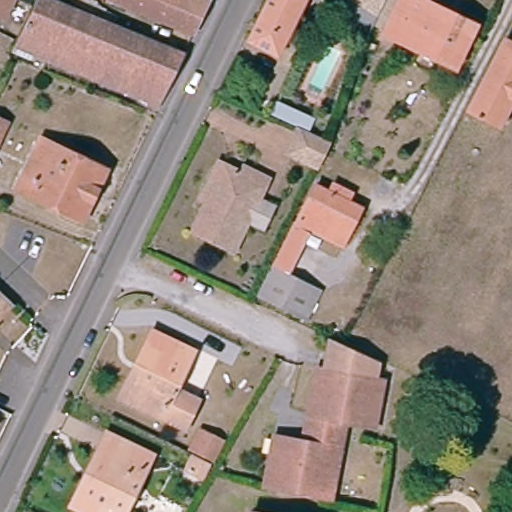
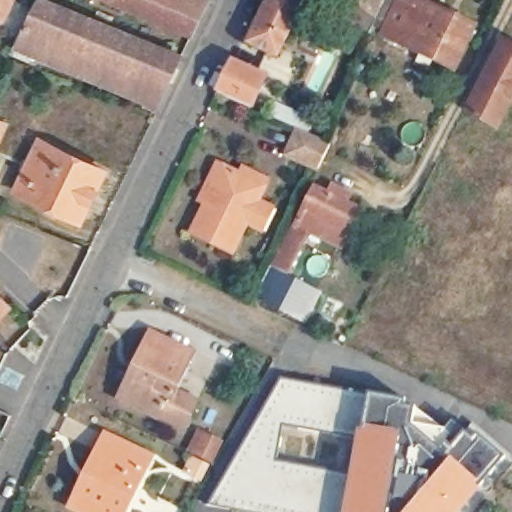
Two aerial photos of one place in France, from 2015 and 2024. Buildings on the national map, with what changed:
unchanged [(45,0),(126,34),(180,58),(156,111),(148,108),(149,104),(41,60),(19,49),(44,0),(45,0)]
unchanged [(104,0),(119,0),(116,6),(104,0)]
unchanged [(116,6),(119,0),(191,0),(197,3),(181,36),(116,6)]
unchanged [(247,44),(268,0),(304,0),(276,56),(247,44)]
unchanged [(396,0),(412,8),(413,5),(467,31),(447,70),(379,36),(396,0)]
unchanged [(512,44),(512,105),(501,128),(471,113),(508,41),(512,44)]
unchanged [(234,63),(268,78),(255,110),(218,94),(234,63)]
unchanged [(2,126),(0,129),(0,125),(2,126)]
unchanged [(319,153),(309,173),(280,158),(292,131),(323,145),(319,153)]
unchanged [(42,141),(106,173),(83,221),(17,189),(42,141)]
unchanged [(239,161),(268,177),(258,200),(271,206),(258,230),(245,225),(229,255),(183,232),(198,201),(189,196),(207,164),(215,168),(231,177),(239,161)]
unchanged [(329,196),(335,185),(357,196),(352,207),(361,211),(343,249),(310,234),(287,279),(319,294),(306,319),(261,297),(318,190),(329,196)]
unchanged [(4,305),(0,309),(0,301),(4,305)]
unchanged [(133,370),(149,337),(190,357),(171,395),(194,406),(181,432),(123,404),(118,402),(133,370)]
demolished [(379,366),(375,385),(367,383),(358,428),(341,424),(310,416),(320,370),(318,370),(324,340),(332,344),(379,366)]
new [(405,401),(404,408),(416,410),(414,426),(447,455),(466,433),(474,440),(478,435),(506,457),(463,512),(253,512),(212,505),(283,379),(369,395),(405,401)]
unchanged [(183,468),(190,455),(185,453),(186,450),(197,428),(222,440),(208,463),(200,476),(183,468)]
unchanged [(148,461),(123,512),(73,512),(70,511),(83,484),(96,456),(104,440),(148,461)]
demolished [(327,453),(318,494),(276,485),(284,444),(295,446),(327,453)]
demolished [(257,509),(276,512),(256,512),(257,509)]

